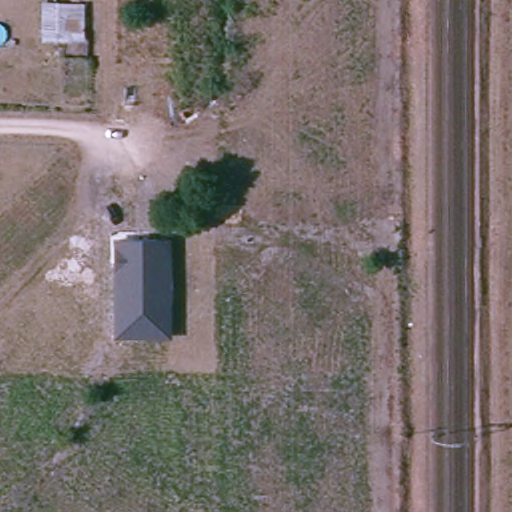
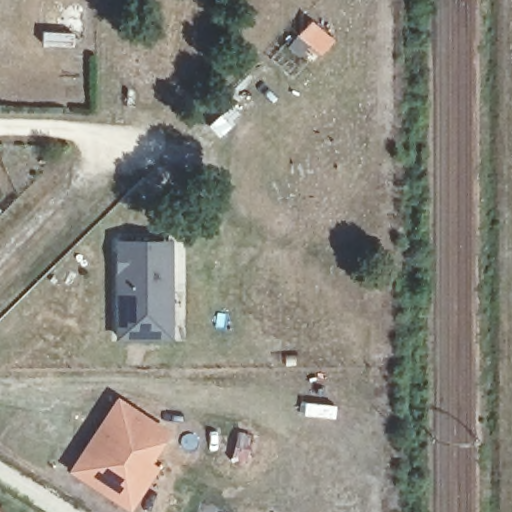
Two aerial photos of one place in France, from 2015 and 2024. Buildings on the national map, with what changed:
unchanged [(43,2),(88,3),(87,30),(40,30),(43,2)]
unchanged [(115,337),(115,239),(171,240),(171,339),(115,337)]
new [(102,422),(116,400),(165,432),(146,462),(154,467),(128,507),(71,470),(83,450),(102,422)]

